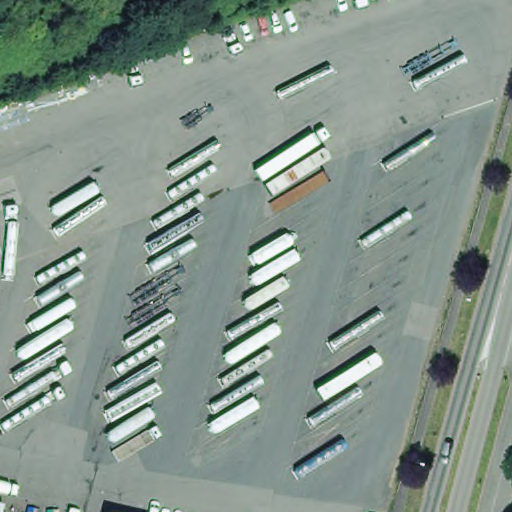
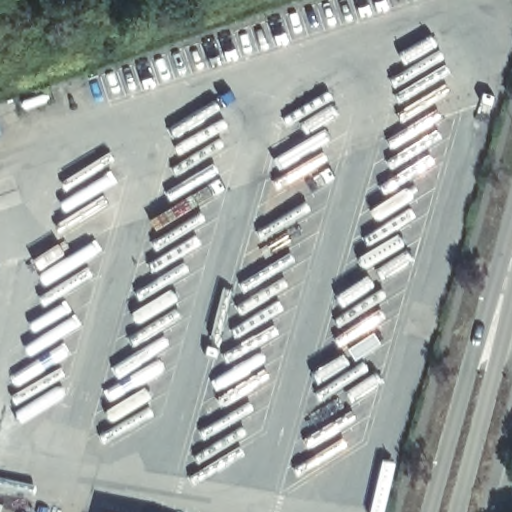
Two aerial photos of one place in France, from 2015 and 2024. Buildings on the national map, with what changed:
[]

